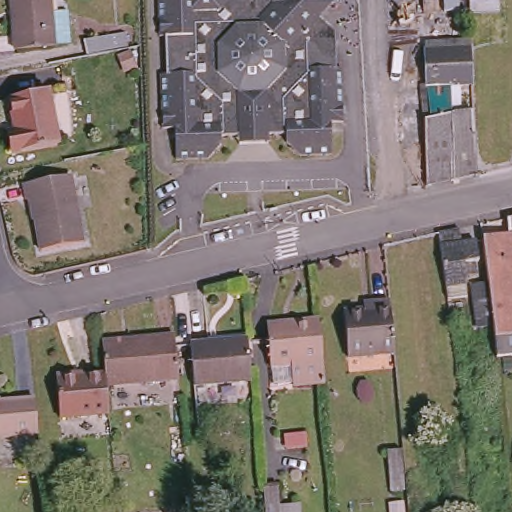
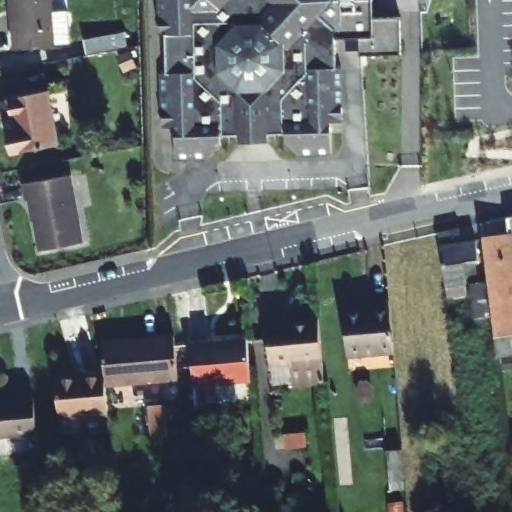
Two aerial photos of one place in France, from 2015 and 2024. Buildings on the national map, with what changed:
unchanged [(47,40),(47,43),(10,46),(7,30),(5,30),(3,0),(43,0),(44,6),(60,6),(62,38),(47,40)]
unchanged [(239,138),(220,139),(220,146),(207,160),(175,161),(173,129),(162,130),(160,76),(165,76),(165,34),(160,35),(159,0),(330,0),(318,19),(335,30),(337,71),(340,71),(342,125),(330,126),(330,156),(299,158),(285,145),(284,136),(265,137),(265,146),(240,147),(239,138)]
new [(335,40),(335,30),(318,19),(330,0),(372,0),(372,39),(335,40)]
new [(399,54),(360,55),(360,39),(372,39),(372,20),(399,18),(399,54)]
unchanged [(85,54),(82,40),(124,32),(125,46),(85,54)]
demolished [(474,166),(449,172),(422,179),(419,114),(426,113),(425,78),(424,41),(466,40),(468,76),(444,77),(445,110),(470,108),(474,166)]
unchanged [(57,146),(15,153),(11,131),(14,130),(8,98),(48,91),(57,146)]
unchanged [(70,176),(83,241),(41,250),(32,200),(27,200),(25,185),(70,176)]
unchanged [(472,278),(487,276),(482,233),(507,230),(506,213),(512,211),(512,237),(510,238),(512,261),(512,338),(495,340),(492,310),(475,312),(472,278)]
unchanged [(439,227),(460,223),(461,236),(476,235),(478,255),(474,255),(475,262),(465,264),(467,289),(448,292),(439,227)]
unchanged [(344,309),(374,306),(374,300),(390,298),(395,350),(347,354),(344,309)]
unchanged [(272,368),(270,331),(270,326),(291,324),(320,322),(323,364),(272,368)]
unchanged [(180,378),(107,383),(105,363),(104,342),(177,337),(180,378)]
unchanged [(192,342),(248,338),(252,380),(195,384),(192,342)]
unchanged [(105,363),(107,383),(110,414),(60,417),(55,367),(105,363)]
unchanged [(33,430),(0,432),(0,397),(30,394),(33,430)]
new [(166,404),(168,434),(152,435),(149,405),(166,404)]

